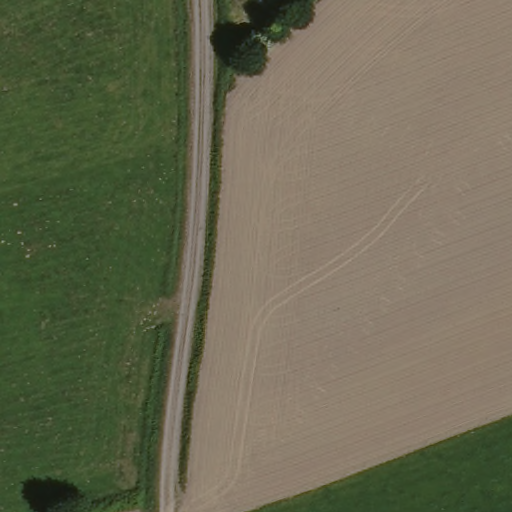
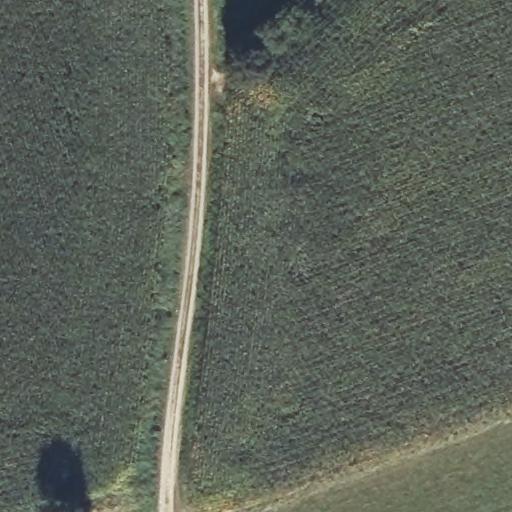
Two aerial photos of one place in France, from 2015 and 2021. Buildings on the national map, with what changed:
[]

